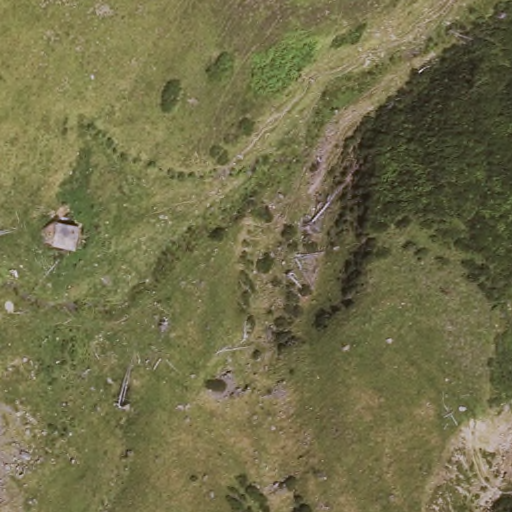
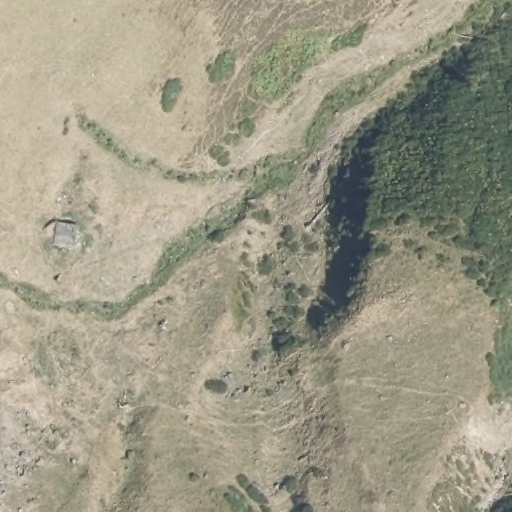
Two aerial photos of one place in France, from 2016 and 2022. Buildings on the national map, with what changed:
unchanged [(78,227),(75,252),(40,245),(43,219),(58,222),(78,227)]

